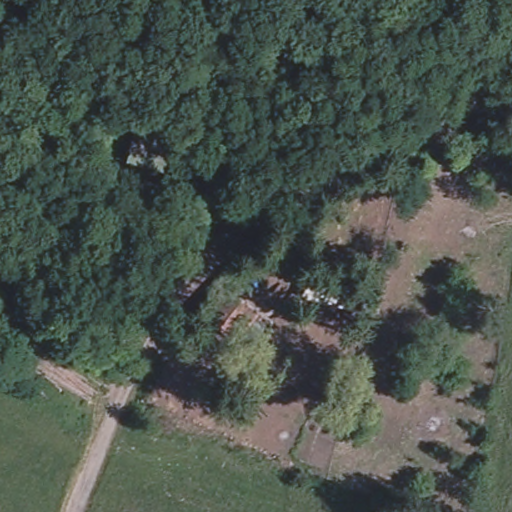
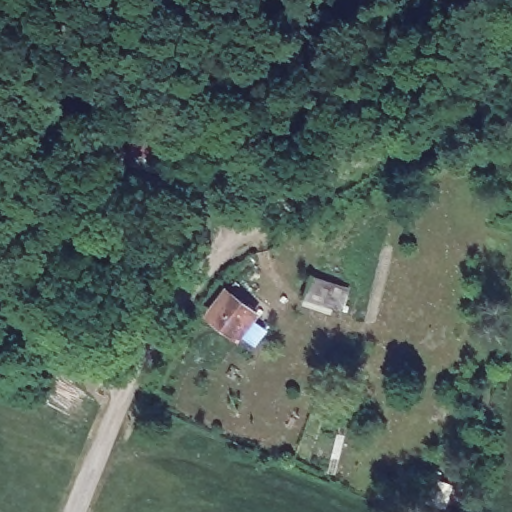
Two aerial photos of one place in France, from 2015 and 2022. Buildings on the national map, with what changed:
unchanged [(168,176),(124,163),(137,111),(186,129),(168,176)]
new [(226,285),(260,309),(239,341),(203,314),(226,285)]
demolished [(220,330),(241,299),(260,312),(240,342),(220,330)]

